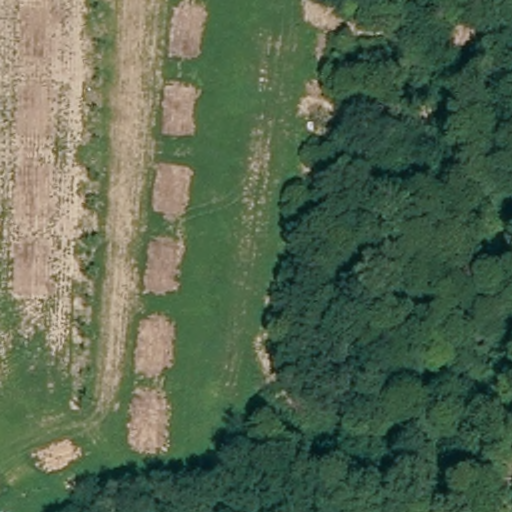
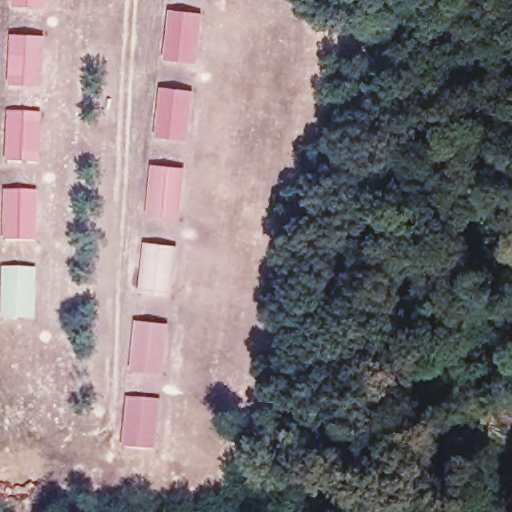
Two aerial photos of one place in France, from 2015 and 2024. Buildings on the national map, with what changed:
new [(10,0),(47,0),(47,7),(10,4),(10,0)]
new [(168,8),(204,13),(198,63),(162,59),(168,8)]
new [(10,33),(47,35),(44,85),(7,83),(10,33)]
new [(159,86),(195,91),(189,140),(154,136),(159,86)]
new [(7,110),(44,113),(40,163),(3,160),(7,110)]
new [(150,163),(187,167),(180,219),(144,215),(150,163)]
new [(3,189),(40,191),(37,242),(1,239),(3,189)]
new [(144,241),(177,245),(171,294),(137,289),(144,241)]
new [(3,266),(38,268),(36,320),(0,318),(0,298),(3,266)]
new [(134,319),(171,323),(165,375),(128,370),(134,319)]
new [(127,397),(163,400),(157,451),(121,447),(127,397)]

